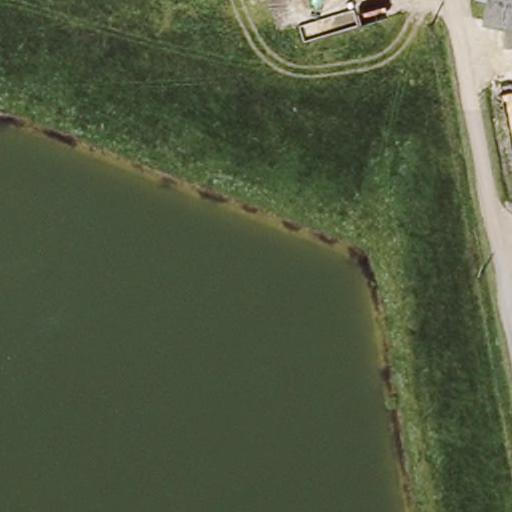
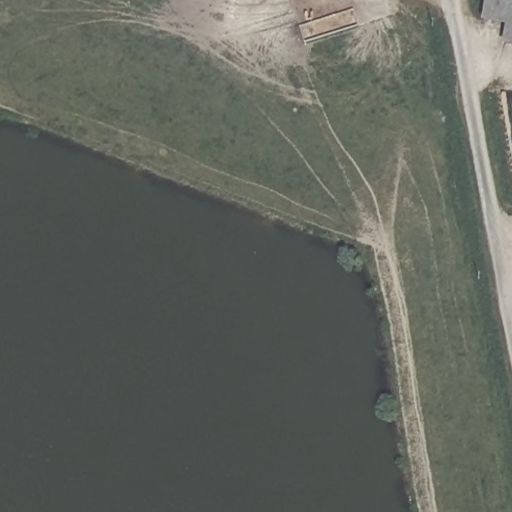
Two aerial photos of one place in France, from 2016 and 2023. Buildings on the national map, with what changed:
unchanged [(508,19),(508,23),(505,22),(483,19),(487,0),(512,0),(512,3),(508,19)]
unchanged [(503,44),(508,23),(508,19),(512,3),(512,45),(503,44)]

